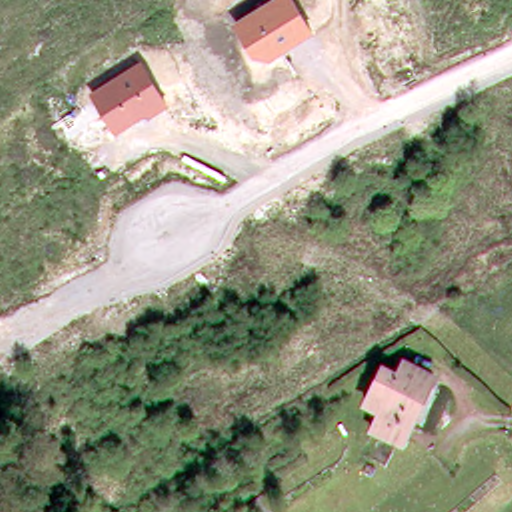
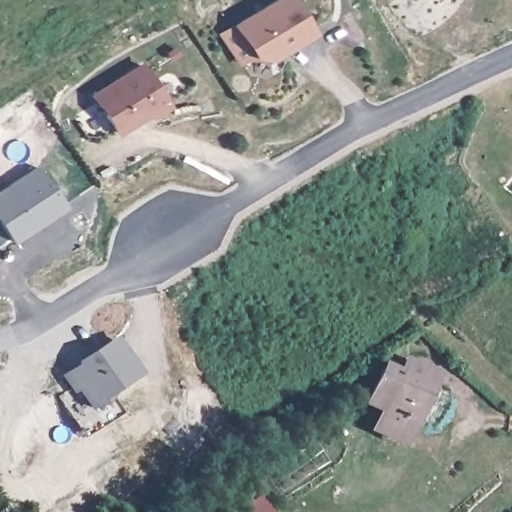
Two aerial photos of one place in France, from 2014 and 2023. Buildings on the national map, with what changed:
unchanged [(252,56),(232,24),(272,0),(294,0),(314,33),(270,61),(252,56)]
unchanged [(116,134),(90,93),(142,60),(169,105),(150,118),(146,115),(116,134)]
new [(37,164),(65,205),(12,243),(0,226),(0,189),(37,164)]
new [(141,373),(110,394),(113,398),(102,407),(88,411),(76,393),(70,397),(57,376),(115,337),(141,373)]
unchanged [(404,449),(368,432),(375,411),(355,402),(377,360),(398,369),(402,357),(437,373),(404,449)]

